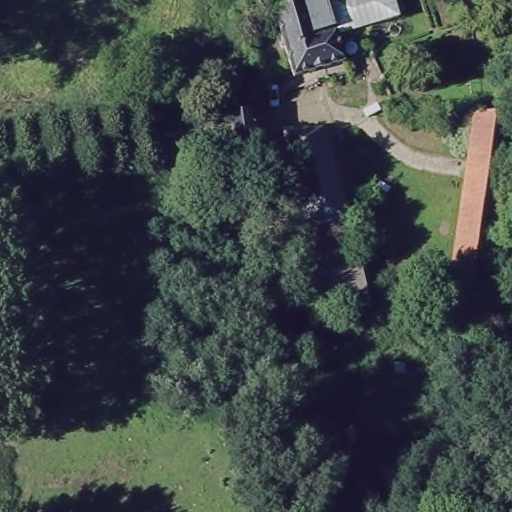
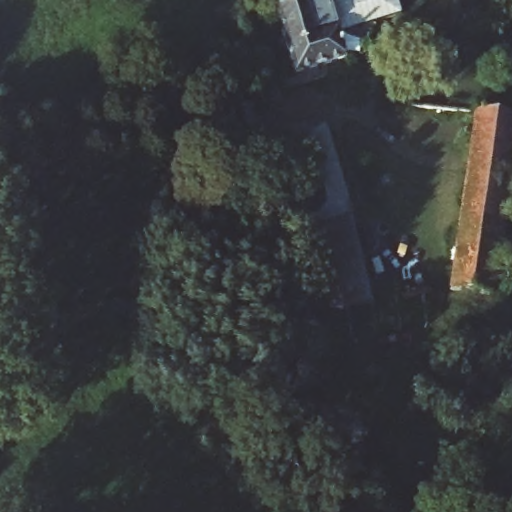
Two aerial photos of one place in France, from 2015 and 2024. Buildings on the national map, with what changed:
unchanged [(307,0),(360,0),(368,22),(342,32),(348,49),(290,67),(271,13),(307,0)]
unchanged [(405,10),(368,22),(360,0),(402,0),(405,10)]
unchanged [(332,316),(310,225),(291,160),(245,150),(240,106),(255,103),(256,115),(325,125),(352,214),(375,306),(332,316)]
unchanged [(465,117),(489,117),(508,118),(501,297),(461,295),(465,117)]
unchanged [(374,238),(447,236),(448,274),(376,277),(374,238)]

